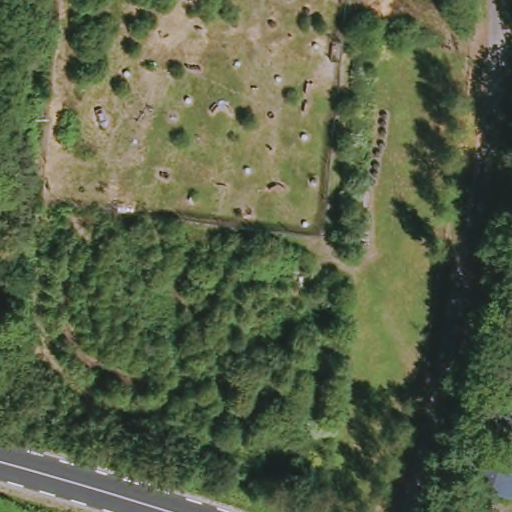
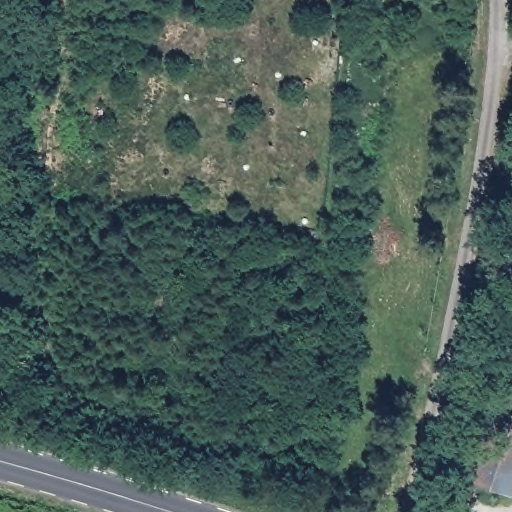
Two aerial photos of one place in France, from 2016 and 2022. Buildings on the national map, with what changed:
unchanged [(504,370),(497,389),(484,384),(491,364),(504,370)]
unchanged [(512,418),(512,476),(483,466),(499,414),(512,418)]

